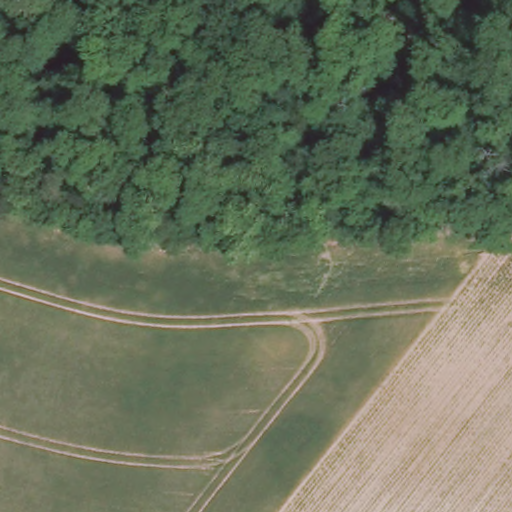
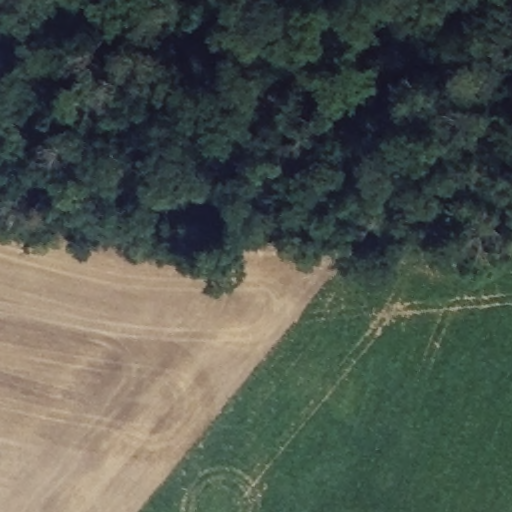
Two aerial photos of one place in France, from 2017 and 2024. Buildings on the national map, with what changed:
unchanged [(507,185),(512,184),(512,195),(507,185)]

